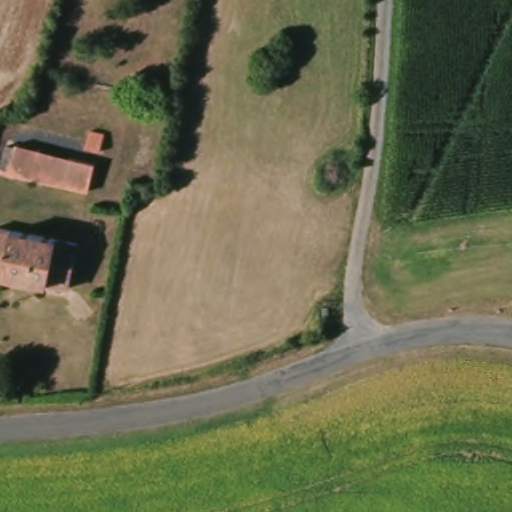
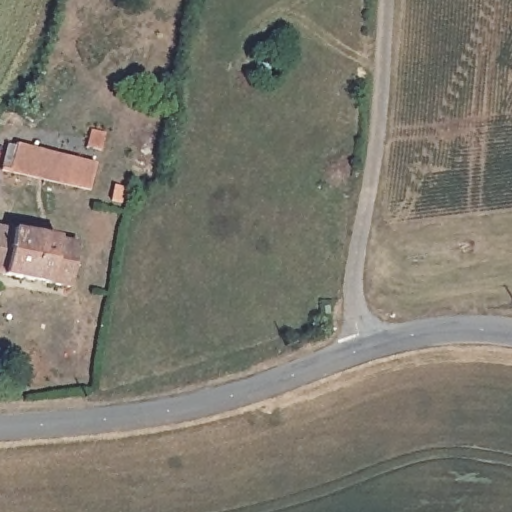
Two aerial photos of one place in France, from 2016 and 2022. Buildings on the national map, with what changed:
unchanged [(80,152),(76,165),(86,168),(79,193),(0,176),(0,129),(27,136),(32,137),(34,133),(35,132),(65,140),(69,141),(71,136),(72,137),(83,140),(85,136),(97,139),(92,155),(80,152)]
unchanged [(14,231),(84,243),(76,290),(0,276),(0,236),(2,229),(14,231)]

